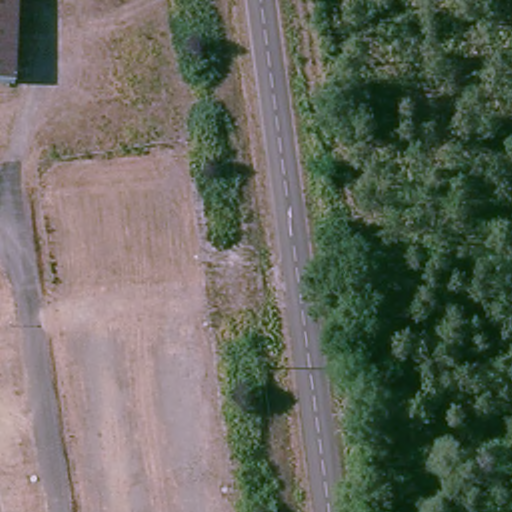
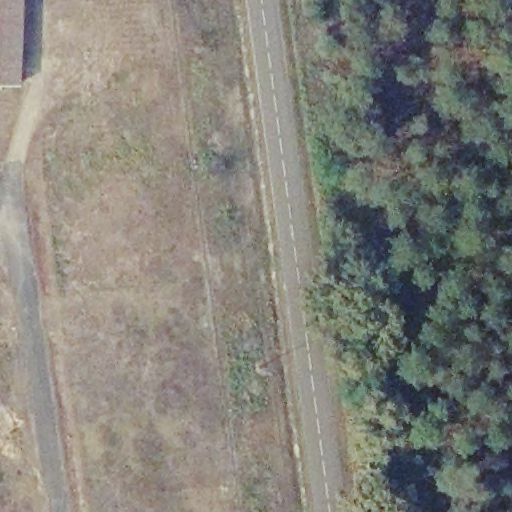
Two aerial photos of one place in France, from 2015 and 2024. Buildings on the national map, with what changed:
unchanged [(0,0),(20,0),(18,85),(0,84),(0,0)]

